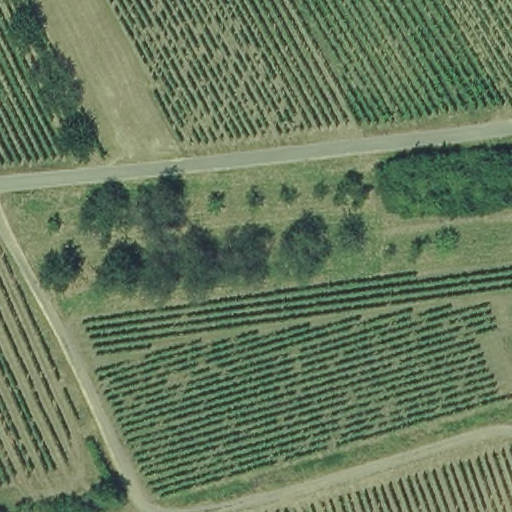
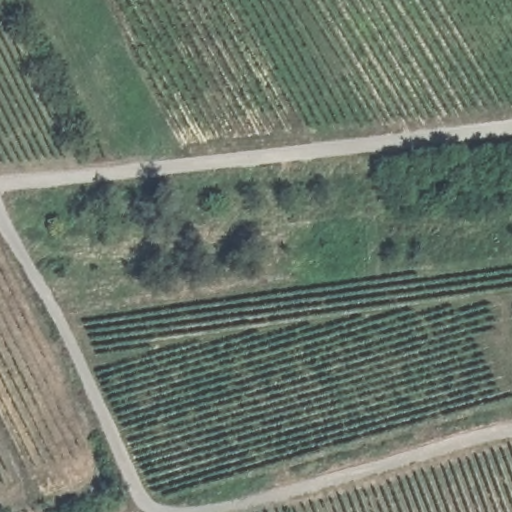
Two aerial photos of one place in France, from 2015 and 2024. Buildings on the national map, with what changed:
unchanged [(104,509),(94,512),(68,512),(60,495),(92,485),(104,509)]

